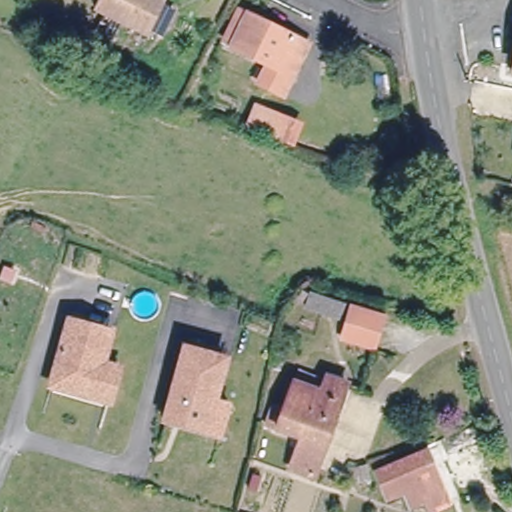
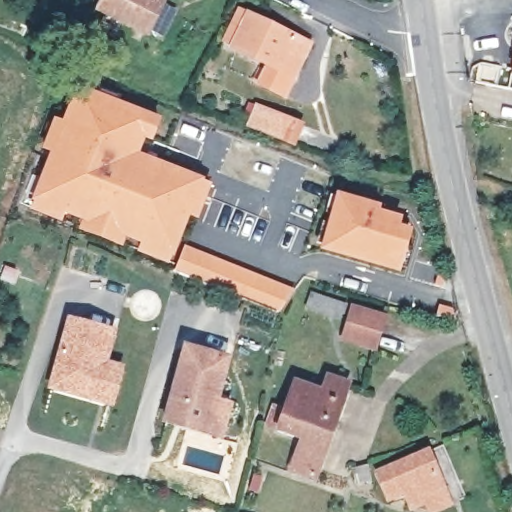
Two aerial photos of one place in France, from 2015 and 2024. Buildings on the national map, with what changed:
unchanged [(103,0),(168,0),(152,30),(101,3),(103,0)]
unchanged [(297,77),(287,95),(264,83),(272,65),(236,46),(227,42),(242,10),(252,15),(298,38),(313,45),(297,77)]
new [(161,118),(152,142),(144,140),(140,153),(212,184),(197,218),(190,216),(170,266),(135,252),(140,241),(126,237),(122,247),(80,231),(84,220),(68,213),(63,223),(27,210),(50,153),(41,150),(55,118),(63,121),(78,84),(161,118)]
new [(305,121),(295,144),(246,125),(255,103),(305,121)]
new [(381,205),(381,210),(402,215),(400,224),(411,227),(400,271),(320,249),(335,191),(381,205)]
unchanged [(312,294),(340,302),(335,316),(308,307),(312,294)]
unchanged [(354,307),(384,316),(375,347),(345,338),(354,307)]
unchanged [(75,316),(117,328),(109,359),(124,363),(114,397),(57,382),(75,316)]
unchanged [(223,433),(209,429),(170,418),(188,349),(227,360),(217,400),(231,404),(223,433)]
unchanged [(307,436),(282,427),(299,380),(328,391),(333,376),(351,382),(320,475),(296,466),(307,436)]
demolished [(474,424),(480,440),(451,453),(444,437),(474,424)]
unchanged [(431,447),(453,498),(437,505),(432,493),(419,499),(413,487),(401,492),(399,487),(393,488),(384,466),(431,447)]
unchanged [(358,463),(373,459),(375,464),(377,471),(362,475),(358,463)]

